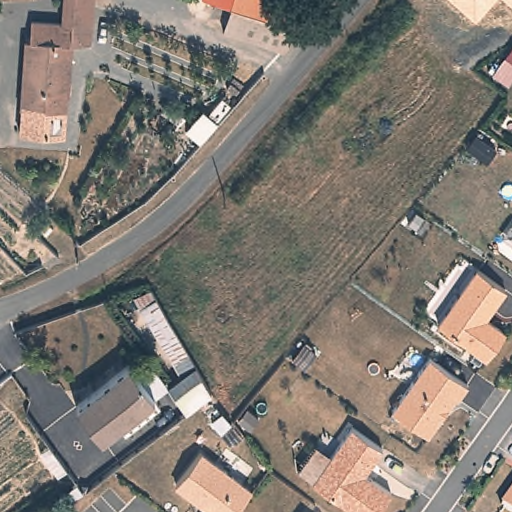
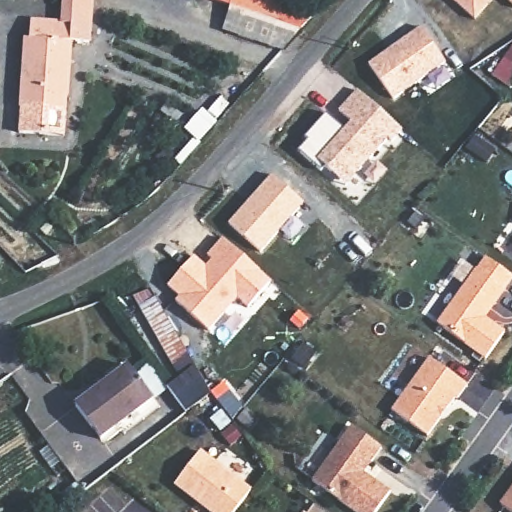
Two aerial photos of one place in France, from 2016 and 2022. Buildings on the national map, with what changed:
unchanged [(74,40),(70,99),(63,100),(62,114),(21,111),(23,68),(31,69),(34,24),(49,24),(53,24),(62,24),(65,0),(91,0),(89,41),(74,40)]
unchanged [(306,26),(285,52),(221,30),(229,6),(213,0),(286,0),(280,19),(306,26)]
new [(452,0),(493,0),(476,21),(452,0)]
demolished [(502,0),(504,0),(502,1),(502,0)]
new [(512,0),(512,4),(508,0),(512,0)]
new [(421,25),(447,61),(394,99),(368,64),(421,25)]
new [(309,140),(304,136),(327,113),(344,129),(351,121),(338,111),(357,89),(403,130),(392,143),(387,139),(347,185),(324,166),(320,170),(298,151),(309,140)]
new [(271,175),(303,203),(261,253),(228,224),(271,175)]
new [(179,296),(167,286),(194,254),(206,265),(211,259),(207,255),(222,238),(271,281),(249,307),(237,298),(209,332),(174,302),(179,296)]
unchanged [(476,268),(506,289),(487,317),(504,329),(483,359),(436,324),(476,268)]
unchanged [(213,395),(188,414),(167,384),(178,376),(134,297),(151,287),(213,395)]
new [(414,377),(398,367),(410,349),(427,361),(429,358),(465,384),(428,437),(391,411),(414,377)]
unchanged [(126,369),(154,402),(103,444),(76,411),(126,369)]
unchanged [(351,426),(381,448),(365,473),(389,490),(375,512),(355,512),(312,481),(351,426)]
unchanged [(201,451),(253,490),(235,512),(207,512),(174,486),(201,451)]
unchanged [(512,508),(503,502),(512,489),(512,508)]

